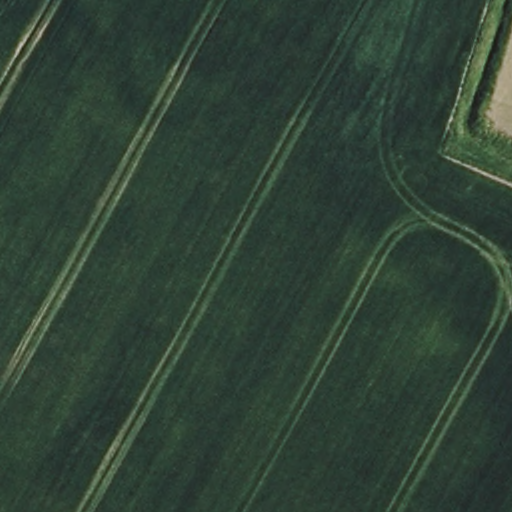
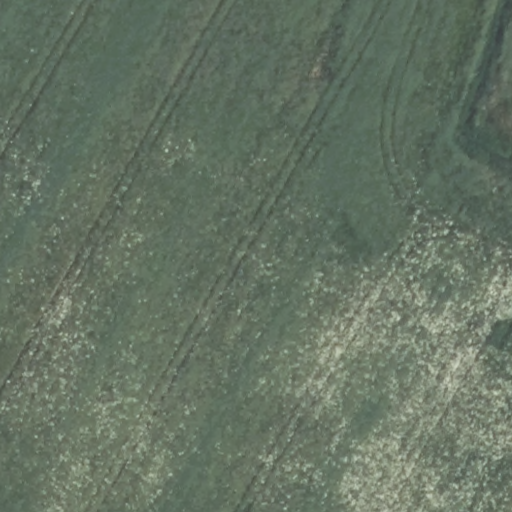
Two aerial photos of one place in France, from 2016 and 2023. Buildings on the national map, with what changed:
[]

